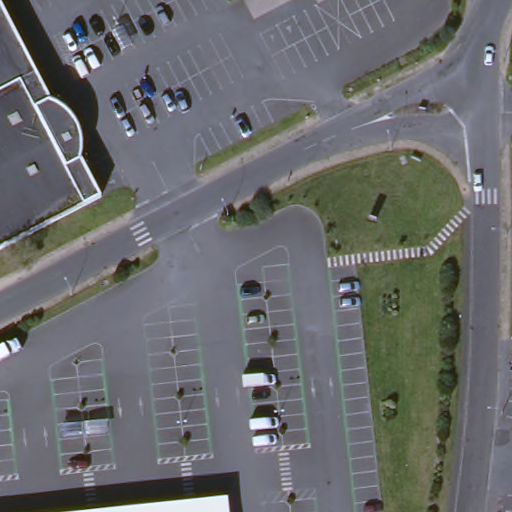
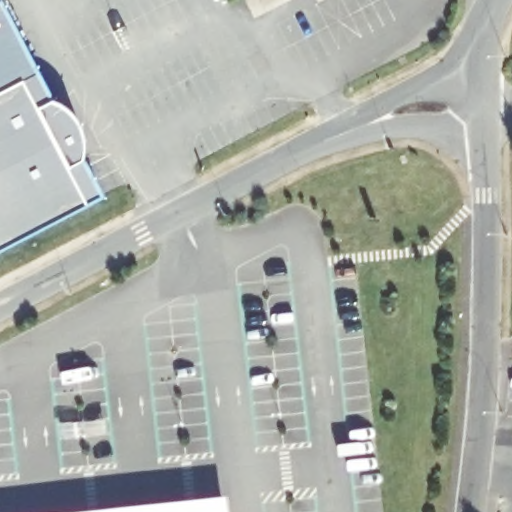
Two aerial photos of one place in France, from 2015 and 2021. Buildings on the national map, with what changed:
unchanged [(62,105),(74,114),(81,128),(86,142),(84,162),(106,201),(0,254),(0,0),(2,0),(51,102),(62,105)]

